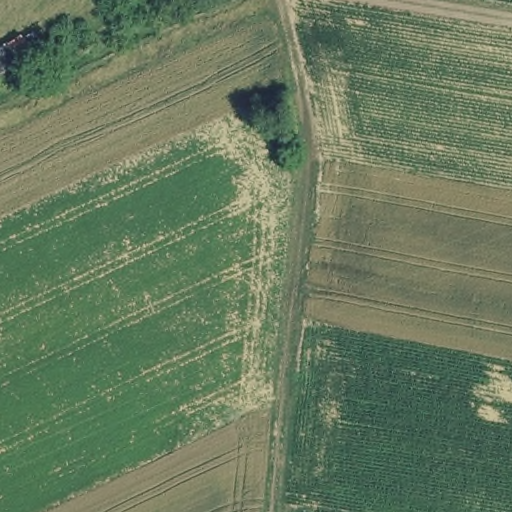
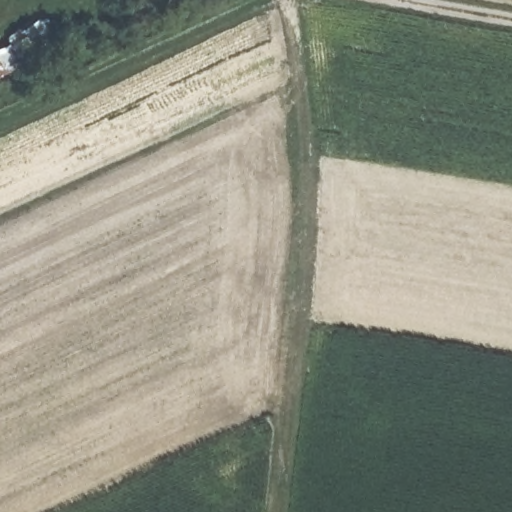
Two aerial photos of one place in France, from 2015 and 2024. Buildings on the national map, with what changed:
unchanged [(23,66),(0,78),(0,45),(10,40),(23,66)]

